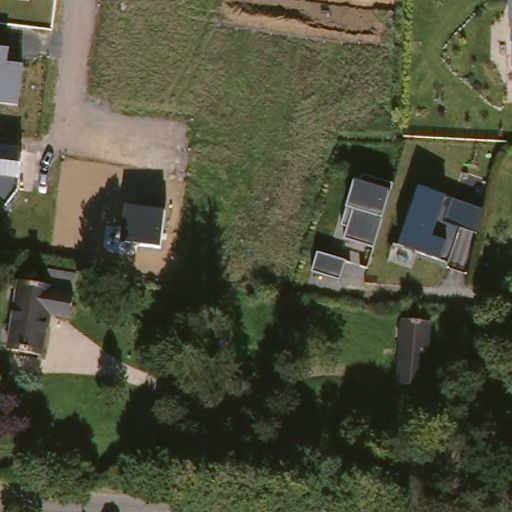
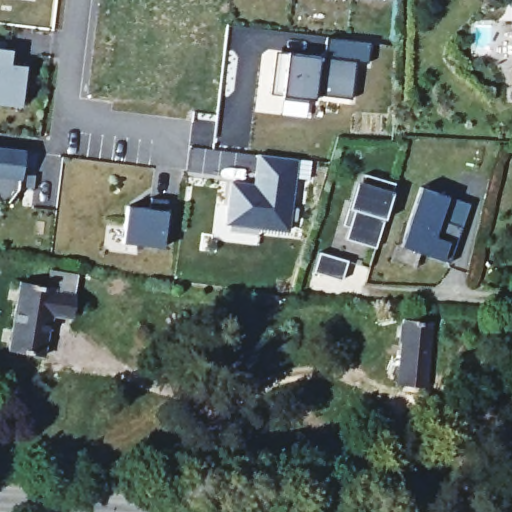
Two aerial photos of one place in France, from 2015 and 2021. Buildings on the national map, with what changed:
unchanged [(509,0),(512,0),(512,60),(509,0)]
new [(365,65),(353,61),(348,100),(312,100),(280,96),(269,94),(276,52),(286,54),(319,57),(328,37),(367,44),(365,65)]
unchanged [(10,64),(26,65),(21,107),(0,105),(0,48),(11,49),(10,64)]
unchanged [(0,146),(24,149),(21,179),(19,190),(7,205),(0,200),(0,146)]
new [(252,185),(256,155),(295,160),(308,162),(306,180),(292,179),(285,232),(223,224),(229,182),(252,185)]
unchanged [(343,239),(353,210),(346,207),(353,180),(360,181),(362,174),(392,183),(390,191),(382,219),(372,246),(343,239)]
unchanged [(402,246),(418,187),(446,196),(487,210),(478,234),(461,227),(449,261),(416,253),(411,270),(388,263),(393,245),(402,246)]
unchanged [(127,204),(166,209),(161,249),(121,245),(127,204)]
unchanged [(346,259),(340,277),(311,270),(317,250),(346,259)]
unchanged [(22,296),(26,279),(55,283),(54,290),(81,293),(75,320),(53,317),(46,353),(15,349),(22,296)]
unchanged [(412,320),(438,322),(426,389),(399,385),(410,320),(412,320)]
unchanged [(500,362),(512,380),(512,394),(500,402),(482,375),(500,362)]

